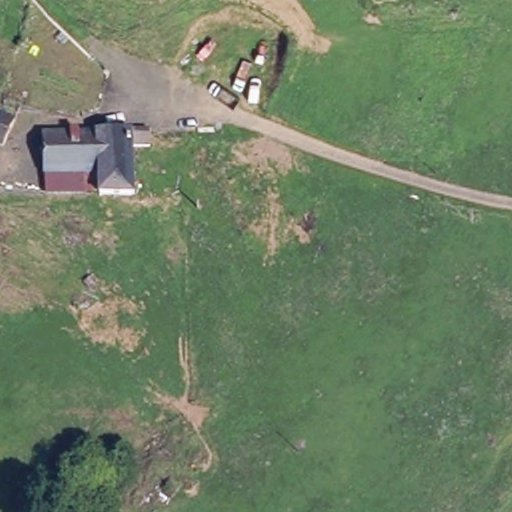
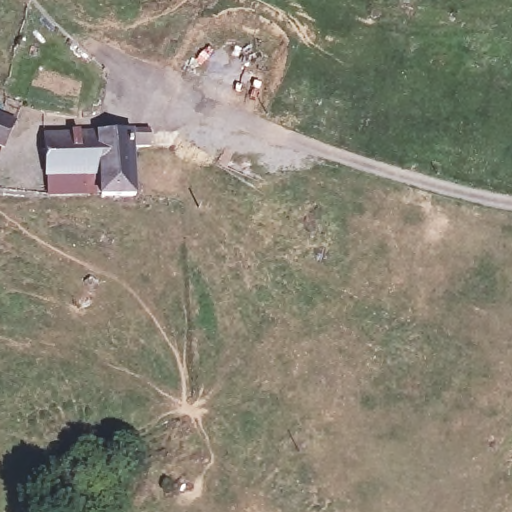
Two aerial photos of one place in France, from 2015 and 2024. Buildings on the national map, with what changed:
unchanged [(11,118),(6,133),(2,147),(0,147),(0,113),(2,113),(11,118)]
unchanged [(101,197),(100,174),(44,175),(42,133),(149,131),(150,145),(136,144),(135,194),(101,197)]

